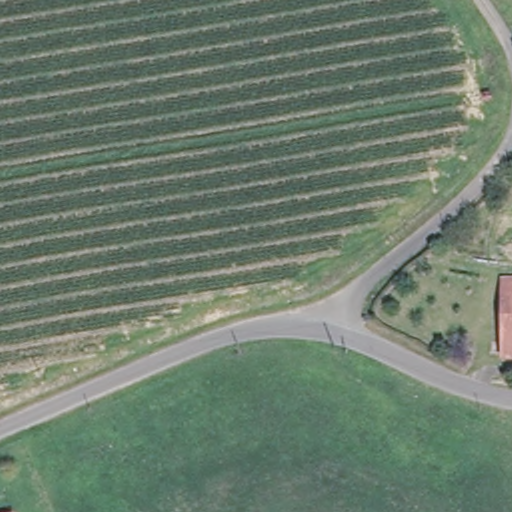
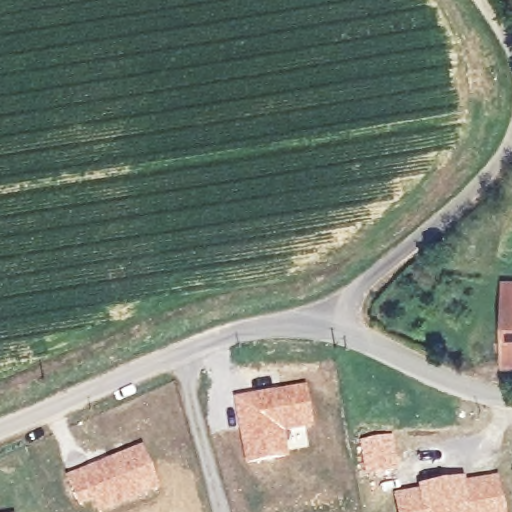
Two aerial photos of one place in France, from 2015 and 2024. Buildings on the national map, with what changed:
unchanged [(512,356),(504,355),(503,279),(512,279),(512,356)]
new [(306,384),(313,425),(285,431),(288,456),(244,464),(231,397),(306,384)]
new [(392,433),(397,467),(362,473),(357,438),(392,433)]
new [(141,445),(160,487),(104,512),(97,512),(91,500),(78,506),(63,475),(141,445)]
new [(442,481),(498,474),(504,512),(396,512),(392,493),(442,481)]

